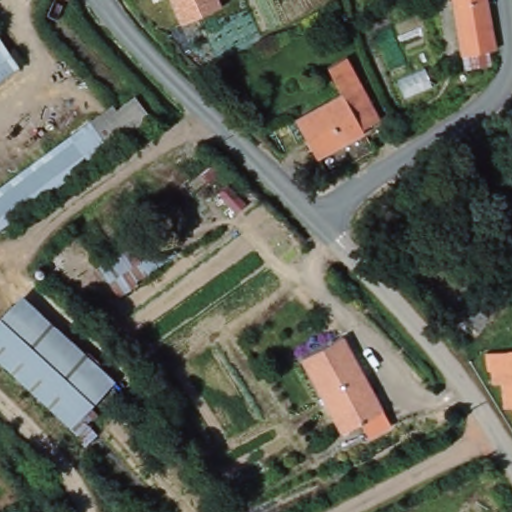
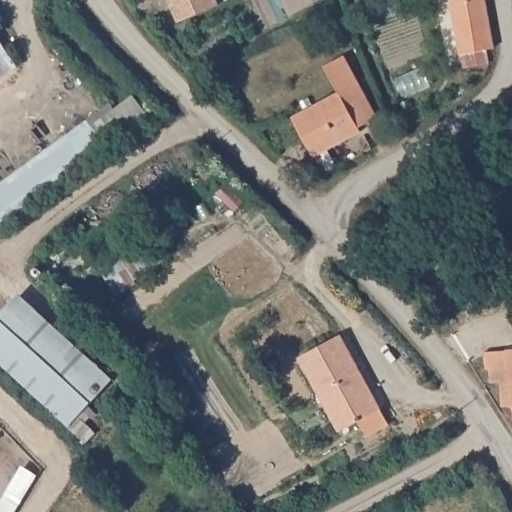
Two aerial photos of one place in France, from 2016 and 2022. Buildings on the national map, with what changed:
unchanged [(220,0),(221,4),(181,20),(173,0),(220,0)]
unchanged [(490,62),(465,70),(462,58),(466,56),(454,0),(484,0),(484,2),(495,49),(488,50),(490,62)]
unchanged [(2,60),(0,61),(0,56),(2,60)]
unchanged [(356,137),(356,139),(311,156),(294,111),(340,94),(332,71),(352,64),(375,130),(356,137)]
unchanged [(0,240),(0,206),(127,90),(144,109),(0,240)]
unchanged [(143,238),(158,268),(112,295),(98,265),(143,238)]
unchanged [(18,290),(116,393),(69,438),(0,367),(0,308),(18,290)]
unchanged [(344,435),(297,366),(338,337),(386,406),(344,435)]
unchanged [(509,404),(498,405),(495,373),(486,373),(484,355),(512,353),(512,413),(510,413),(509,404)]

